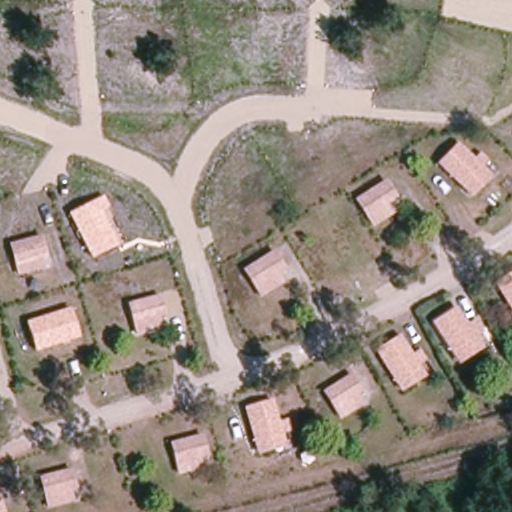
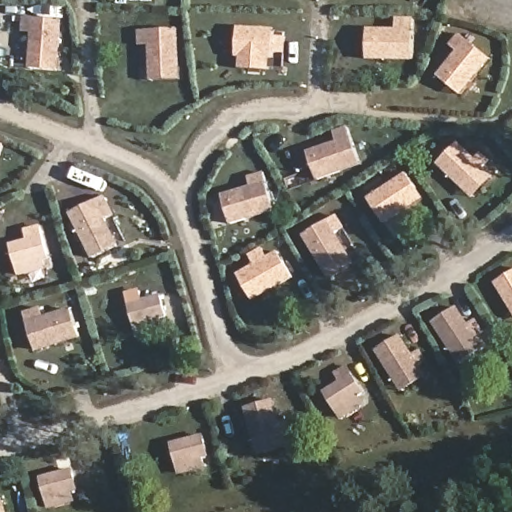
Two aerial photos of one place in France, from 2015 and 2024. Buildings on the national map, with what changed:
new [(21,31),(22,16),(62,19),(60,70),(30,69),(32,32),(21,31)]
new [(367,59),(367,28),(396,28),(396,17),(415,18),(413,60),(367,59)]
new [(268,58),(268,69),(239,68),(240,27),(275,27),(274,58),(268,58)]
new [(138,30),(178,28),(180,79),(150,80),(150,45),(139,44),(138,30)]
new [(461,96),(437,75),(468,38),(492,58),(461,96)]
new [(362,165),(318,181),(308,150),(351,136),(362,165)]
unchanged [(460,143),(475,158),(482,152),(490,162),(484,166),(495,176),(471,198),(437,163),(460,143)]
new [(276,212),(230,225),(221,195),(267,181),(276,212)]
demolished [(385,183),(401,214),(371,230),(355,200),(385,183)]
unchanged [(111,207),(101,212),(118,246),(92,259),(67,213),(104,194),(111,207)]
new [(355,263),(329,279),(302,235),(328,220),(355,263)]
unchanged [(40,237),(47,272),(15,279),(7,244),(40,237)]
unchanged [(272,253),(288,283),(260,301),(242,271),(272,253)]
unchanged [(512,314),(495,285),(512,274),(512,314)]
unchanged [(159,298),(165,333),(135,338),(126,306),(159,298)]
unchanged [(462,306),(478,335),(450,353),(430,325),(462,306)]
unchanged [(80,336),(36,350),(26,322),(70,307),(80,336)]
unchanged [(414,353),(421,349),(428,360),(421,366),(426,376),(401,392),(375,351),(402,335),(414,353)]
new [(195,341),(196,350),(172,356),(170,346),(195,341)]
unchanged [(350,376),(365,406),(340,422),(322,391),(350,376)]
unchanged [(280,420),(288,419),(293,433),(285,434),(286,446),(259,454),(245,408),(274,400),(280,420)]
unchanged [(202,436),(210,460),(204,463),(205,468),(178,476),(169,445),(202,436)]
unchanged [(71,471),(77,491),(72,493),(75,502),(48,508),(40,479),(71,471)]
unchanged [(5,500),(7,512),(0,512),(0,501),(5,500)]

